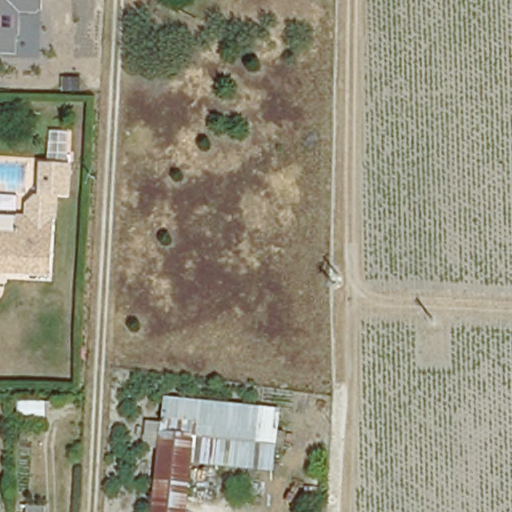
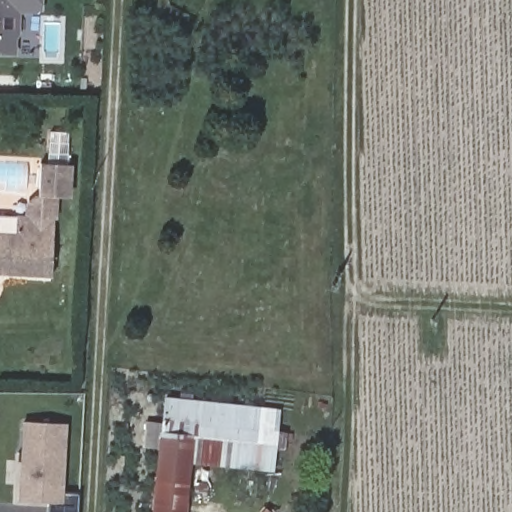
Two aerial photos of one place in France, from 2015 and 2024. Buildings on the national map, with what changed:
unchanged [(19,14),(18,55),(0,55),(0,0),(43,0),(42,14),(19,14)]
unchanged [(33,205),(44,195),(48,164),(76,166),(73,199),(60,197),(52,278),(0,273),(0,214),(32,217),(33,205)]
unchanged [(193,428),(165,426),(161,429),(165,394),(276,404),(270,461),(190,454),(193,428)]
new [(66,499),(79,499),(79,512),(52,512),(51,501),(19,499),(24,422),(65,424),(66,499)]
unchanged [(185,512),(154,512),(161,429),(165,426),(193,428),(190,454),(185,512)]
demolished [(49,504),(49,512),(26,512),(27,501),(49,504)]

